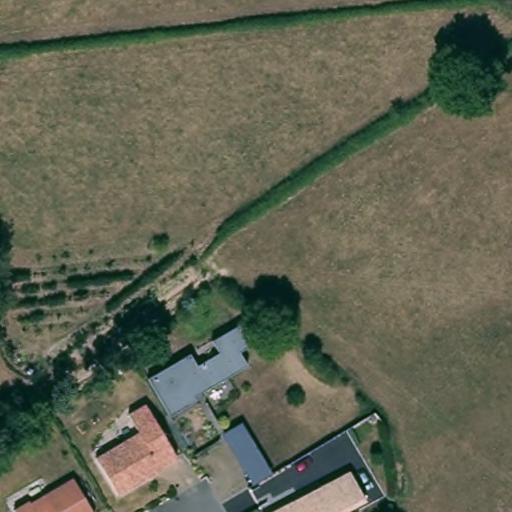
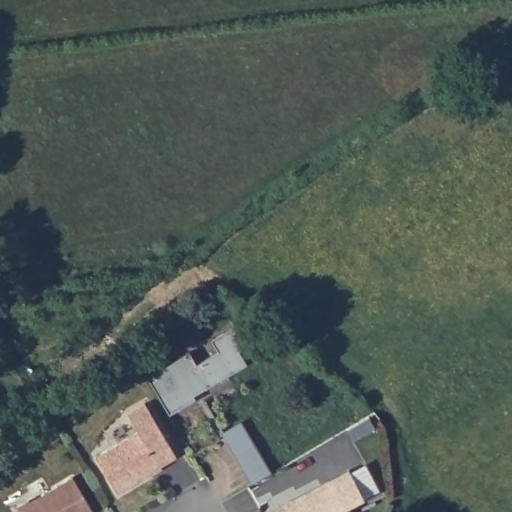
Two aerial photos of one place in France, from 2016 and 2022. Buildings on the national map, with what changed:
unchanged [(252,345),(237,353),(245,367),(196,396),(195,401),(169,416),(149,378),(240,325),(252,345)]
unchanged [(146,405),(177,463),(118,497),(95,457),(137,432),(129,414),(146,405)]
unchanged [(271,475),(253,486),(224,434),(241,422),(271,475)]
unchanged [(363,502),(345,511),(346,512),(271,512),(348,471),(363,502)]
unchanged [(93,512),(16,512),(15,511),(72,478),(93,512)]

